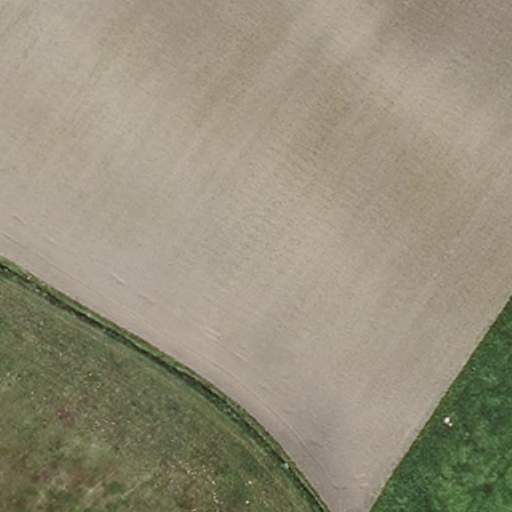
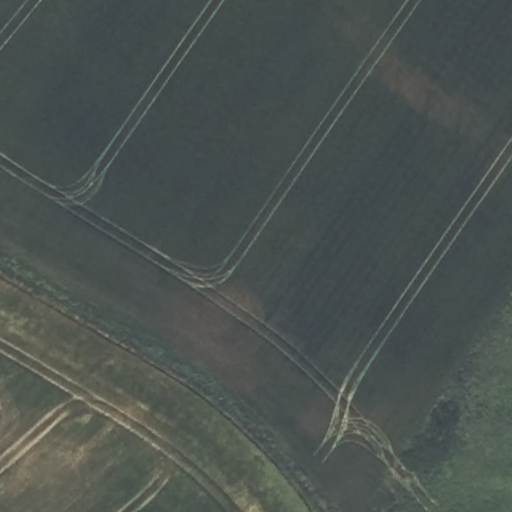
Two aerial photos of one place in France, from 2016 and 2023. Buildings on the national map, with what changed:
[]

